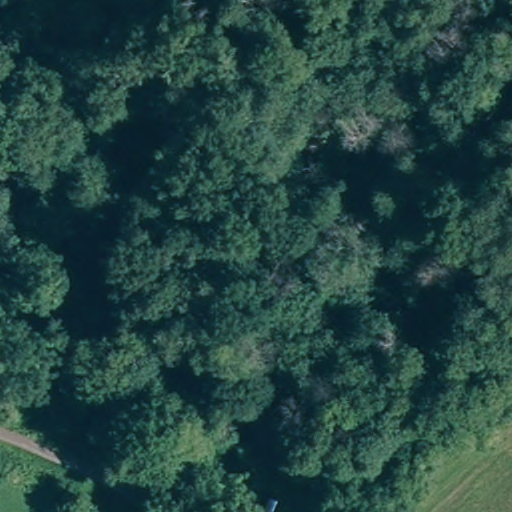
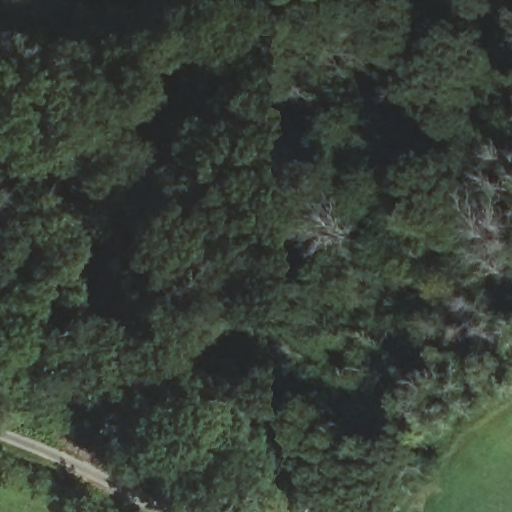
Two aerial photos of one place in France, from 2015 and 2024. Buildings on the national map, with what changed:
[]

